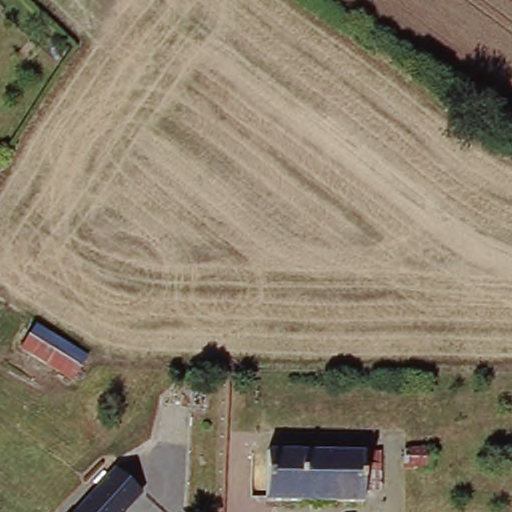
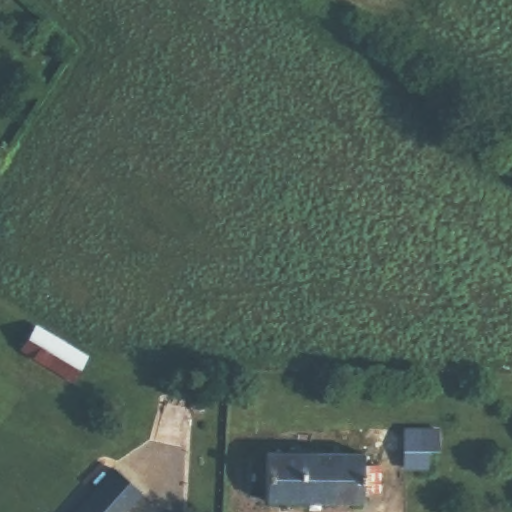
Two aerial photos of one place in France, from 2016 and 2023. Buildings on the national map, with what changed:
unchanged [(92,355),(78,382),(26,353),(40,325),(92,355)]
unchanged [(437,448),(435,468),(418,467),(418,448),(437,448)]
unchanged [(359,453),(358,466),(377,466),(375,492),(360,492),(360,502),(262,501),(262,452),(359,453)]
unchanged [(115,512),(72,512),(105,465),(134,484),(115,512)]

